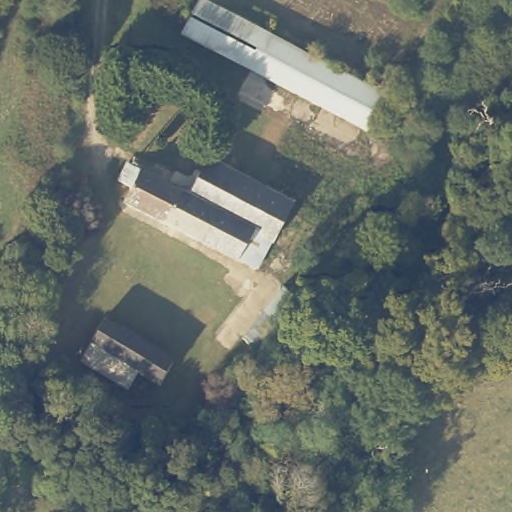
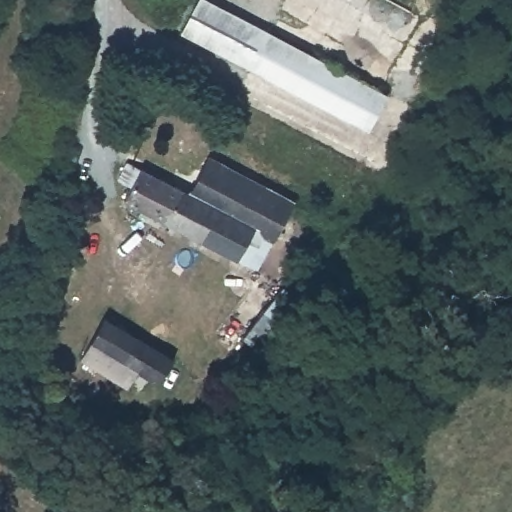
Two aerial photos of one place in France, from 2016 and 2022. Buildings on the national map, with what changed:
unchanged [(368,132),(182,32),(202,0),(205,0),(388,95),(368,132)]
unchanged [(265,190),(293,204),(256,270),(125,203),(132,189),(118,180),(128,163),(191,196),(207,160),(265,190)]
unchanged [(98,228),(73,314),(46,307),(70,219),(98,228)]
unchanged [(303,299),(237,385),(227,375),(249,346),(242,340),(284,286),(303,299)]
unchanged [(174,359),(160,385),(137,374),(128,391),(80,361),(104,319),(174,359)]

